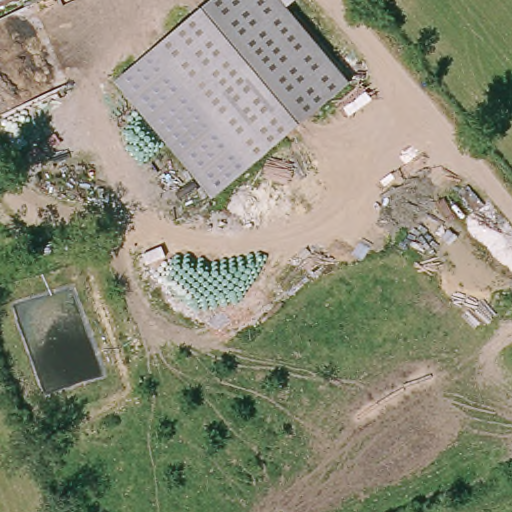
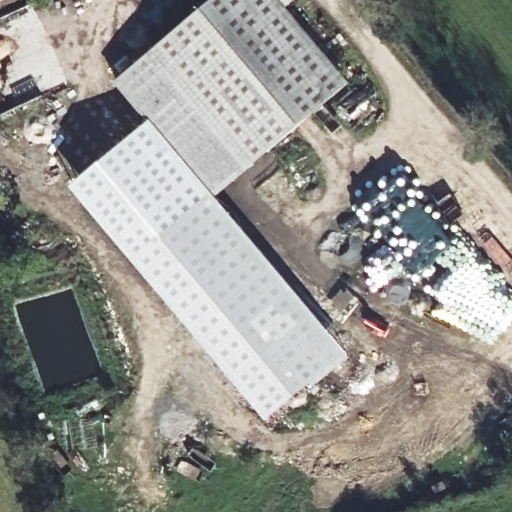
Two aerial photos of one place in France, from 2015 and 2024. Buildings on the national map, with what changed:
unchanged [(0,0),(14,0),(0,6),(0,0)]
unchanged [(212,199),(116,82),(212,0),(281,0),(349,82),(212,199)]
new [(352,355),(273,423),(71,185),(148,121),(212,199),(216,195),(352,355)]

